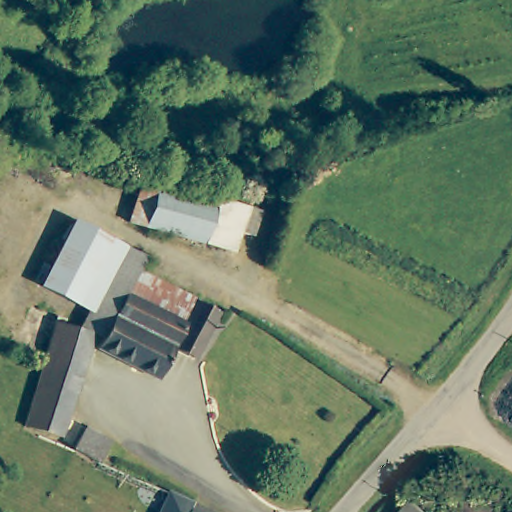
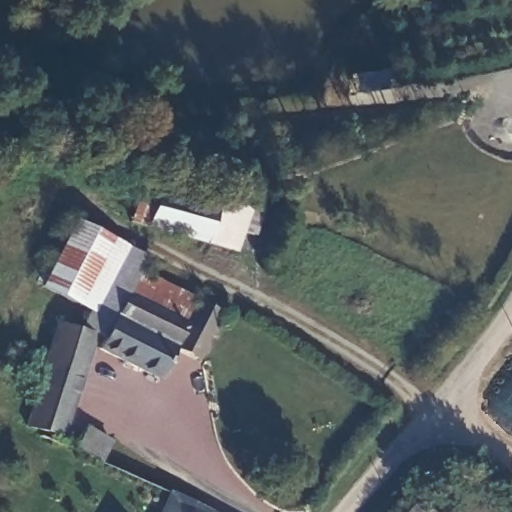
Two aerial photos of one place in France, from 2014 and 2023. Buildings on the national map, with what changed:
unchanged [(211,206),(214,194),(255,206),(247,230),(237,228),(231,248),(129,219),(137,186),(211,206)]
unchanged [(40,277),(76,217),(124,243),(91,303),(40,277)]
unchanged [(144,253),(136,269),(124,293),(104,333),(92,329),(80,325),(91,303),(124,243),(144,253)]
unchanged [(136,269),(191,294),(182,316),(181,320),(124,293),(136,269)]
unchanged [(181,320),(182,316),(186,318),(193,298),(216,309),(196,354),(172,345),(158,376),(97,346),(104,333),(124,293),(181,320)]
unchanged [(80,325),(92,329),(61,434),(22,422),(55,316),(80,325)]
unchanged [(112,445),(103,467),(82,458),(79,457),(89,434),(112,445)]
unchanged [(19,475),(0,462),(0,446),(24,463),(19,475)]
unchanged [(425,512),(392,512),(408,496),(425,512)]
unchanged [(215,512),(190,512),(197,501),(215,512)]

